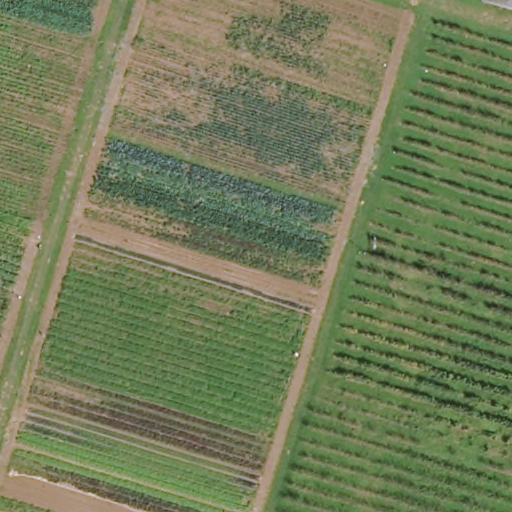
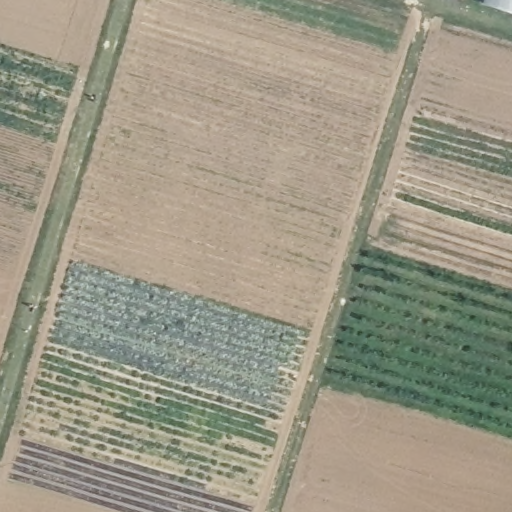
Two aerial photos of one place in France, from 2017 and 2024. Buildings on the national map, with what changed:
unchanged [(484,4),(485,0),(512,0),(512,13),(484,4)]

